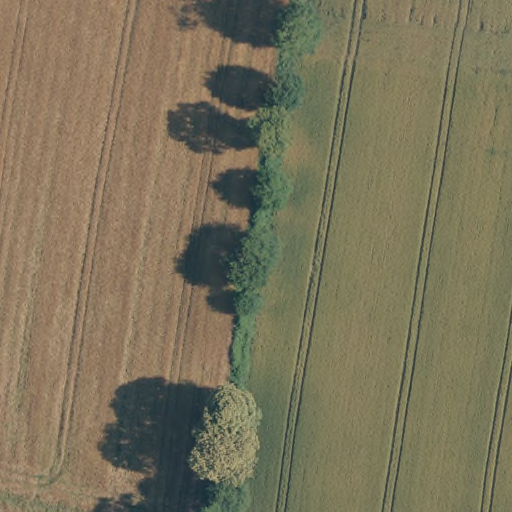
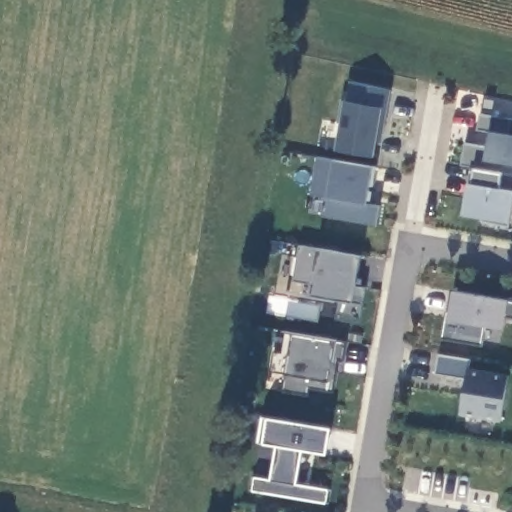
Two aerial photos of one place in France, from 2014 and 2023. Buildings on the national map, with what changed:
new [(391,90),(384,132),(379,132),(375,155),(337,151),(342,123),(339,123),(342,100),(349,101),(352,81),(391,90)]
new [(464,214),(469,182),(473,182),(474,167),(461,165),(465,142),(488,146),(491,132),(478,129),(482,112),(512,117),(512,211),(509,222),(464,214)]
new [(325,215),(329,197),(312,193),(318,157),(335,161),(335,159),(374,165),(367,202),(379,205),(377,224),(325,215)]
new [(337,317),(340,299),(309,294),(312,284),(294,280),(300,244),(318,247),(362,255),(358,277),(363,277),(362,286),(365,287),(360,322),(337,317)]
new [(507,316),(504,328),(487,325),(483,344),(442,338),(447,312),(449,312),(453,289),(509,299),(512,300),(512,317),(507,316)]
new [(310,387),(309,395),(284,391),(287,373),(271,371),(274,352),(283,352),(286,330),(294,332),(337,340),(347,342),(344,361),(339,359),(333,391),(310,387)]
new [(509,373),(501,421),(461,413),(468,378),(437,372),(439,353),(471,359),(469,366),(509,373)]
new [(254,490),(257,477),(270,479),(279,445),(262,442),(267,417),(332,427),(327,452),(304,450),(298,483),(329,488),(326,502),(254,490)]

